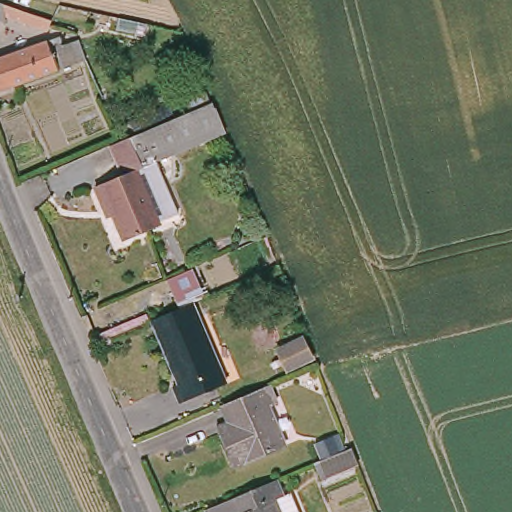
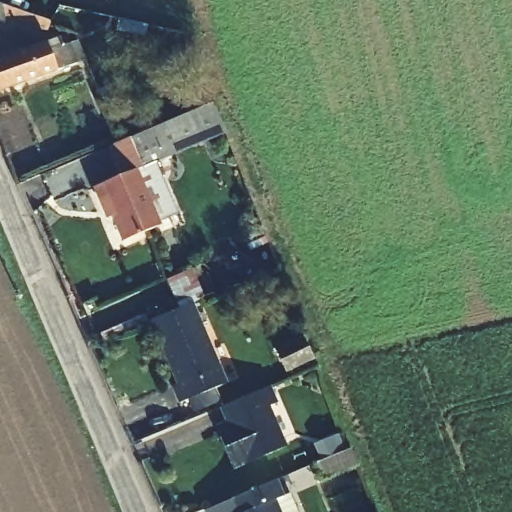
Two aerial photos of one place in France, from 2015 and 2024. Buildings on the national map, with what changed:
unchanged [(2,2),(50,19),(45,30),(3,15),(3,22),(0,22),(0,1),(2,2)]
unchanged [(50,45),(60,41),(61,44),(73,42),(77,62),(65,65),(0,86),(0,54),(47,39),(50,45)]
unchanged [(129,138),(211,99),(225,131),(156,161),(139,167),(129,138)]
unchanged [(121,249),(119,244),(105,212),(98,215),(89,189),(121,177),(111,145),(129,138),(139,167),(156,161),(180,218),(152,230),(155,235),(121,249)]
unchanged [(146,320),(187,303),(215,371),(210,373),(216,386),(175,403),(168,388),(173,385),(160,352),(146,320)]
unchanged [(222,409),(240,402),(233,388),(259,377),(265,392),(270,390),(277,407),(271,410),(286,448),(233,470),(220,436),(216,429),(228,424),(222,409)]
unchanged [(349,446),(355,462),(327,474),(317,478),(311,462),(320,458),(349,446)]
unchanged [(277,477),(284,494),(276,498),(282,512),(234,512),(228,498),(277,477)]

